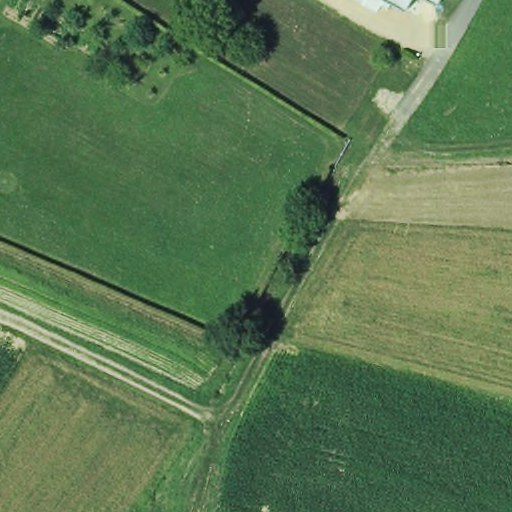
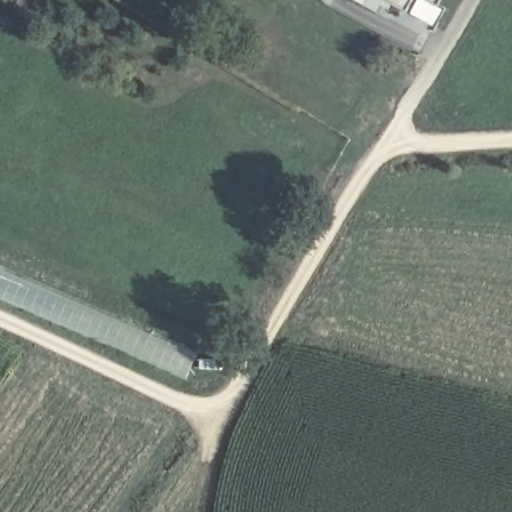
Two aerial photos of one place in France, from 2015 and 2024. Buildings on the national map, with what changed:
unchanged [(407,8),(395,2),(390,9),(381,4),(376,12),(354,0),(412,0),(407,8)]
unchanged [(429,0),(440,0),(438,4),(429,0)]
new [(197,354),(185,380),(0,301),(0,271),(197,354)]

